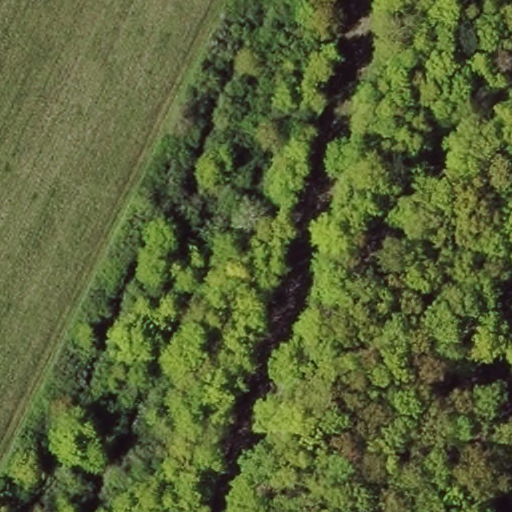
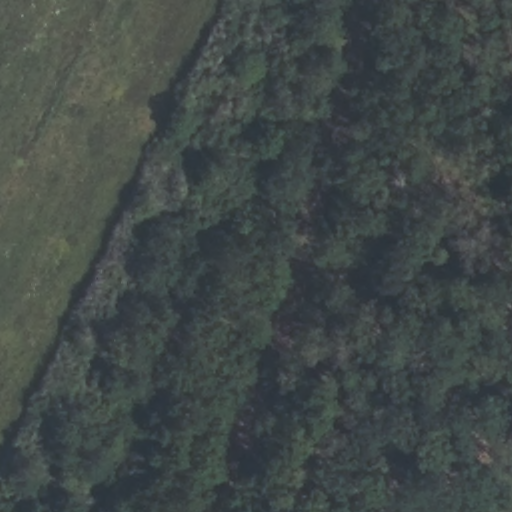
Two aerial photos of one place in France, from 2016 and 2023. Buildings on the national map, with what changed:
[]

